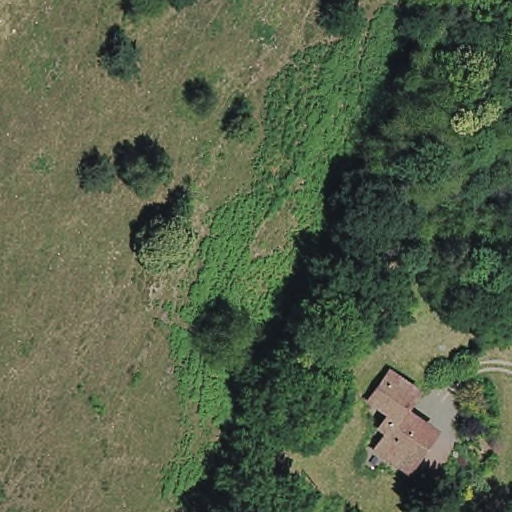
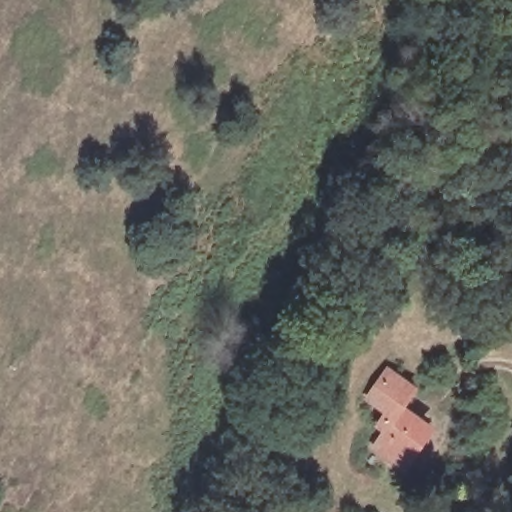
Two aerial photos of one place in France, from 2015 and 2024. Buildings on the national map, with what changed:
unchanged [(414,462),(420,466),(414,475),(382,453),(393,437),(385,432),(396,416),(378,403),(397,377),(422,396),(410,415),(435,432),(414,462)]

